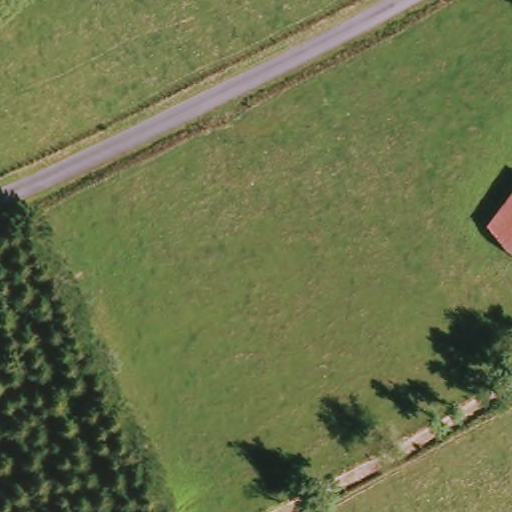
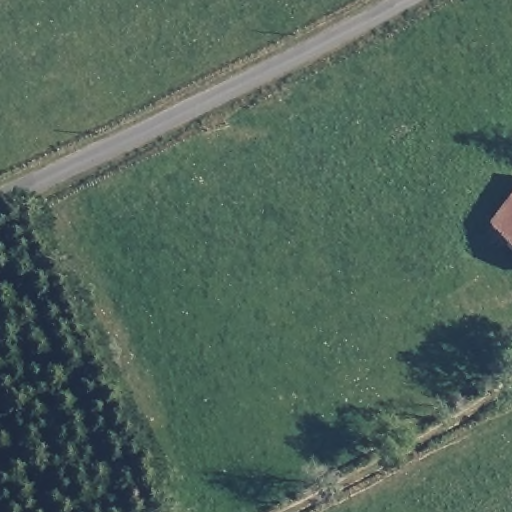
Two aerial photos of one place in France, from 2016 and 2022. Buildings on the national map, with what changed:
unchanged [(499,225),(512,207),(512,242),(499,225)]

